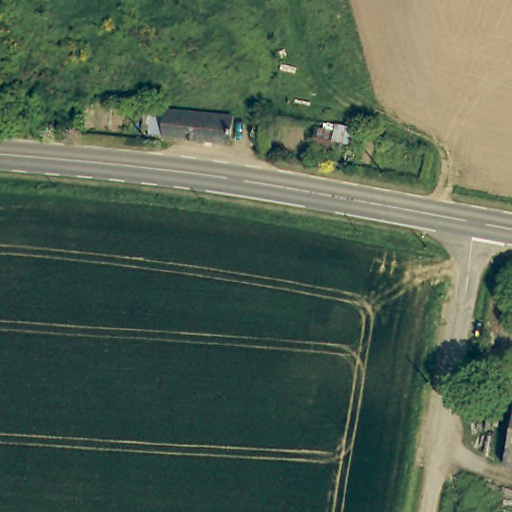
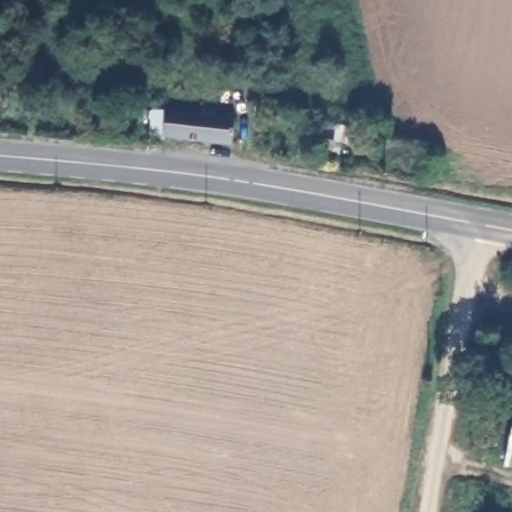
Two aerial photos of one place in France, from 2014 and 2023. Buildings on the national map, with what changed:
unchanged [(172,138),(148,126),(151,109),(175,110),(239,117),(239,143),(172,138)]
unchanged [(309,137),(317,131),(327,133),(324,149),(310,146),(309,137)]
unchanged [(505,464),(512,432),(512,465),(505,464)]

